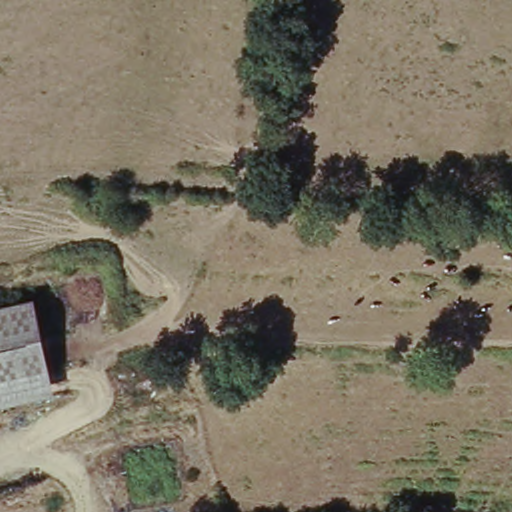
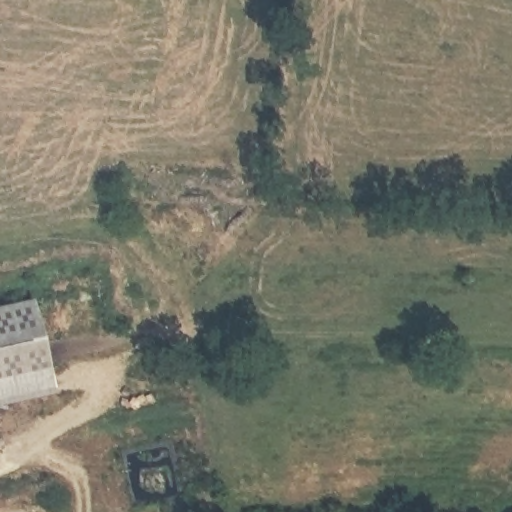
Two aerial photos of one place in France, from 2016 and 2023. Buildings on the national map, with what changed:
unchanged [(55,391),(0,403),(0,305),(33,298),(55,391)]

